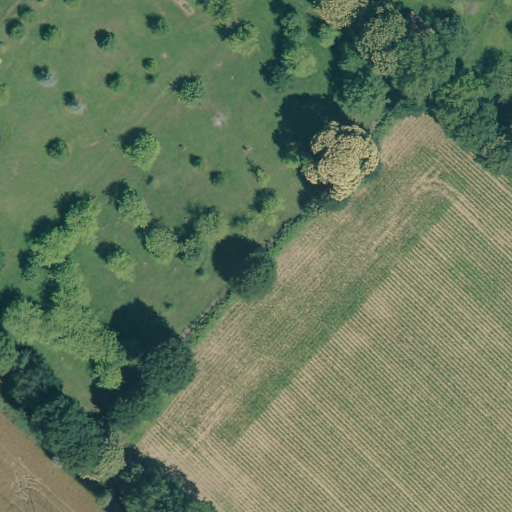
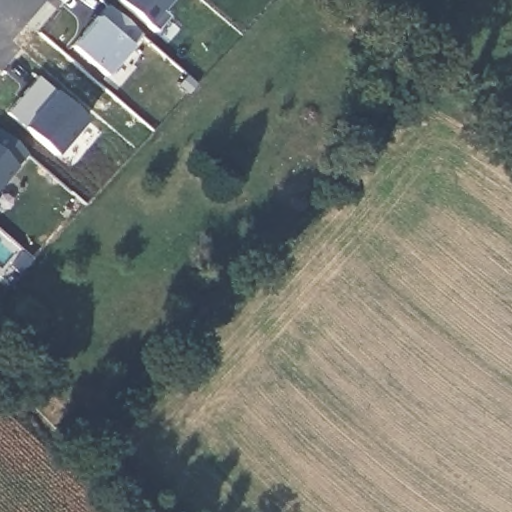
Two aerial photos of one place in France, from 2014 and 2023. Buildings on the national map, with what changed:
new [(161,10),(167,16),(154,30),(119,0),(170,0),(161,10)]
new [(108,4),(141,33),(106,75),(72,45),(108,4)]
new [(38,77),(86,118),(55,155),(6,113),(38,77)]
new [(0,130),(27,153),(0,184),(0,130)]

